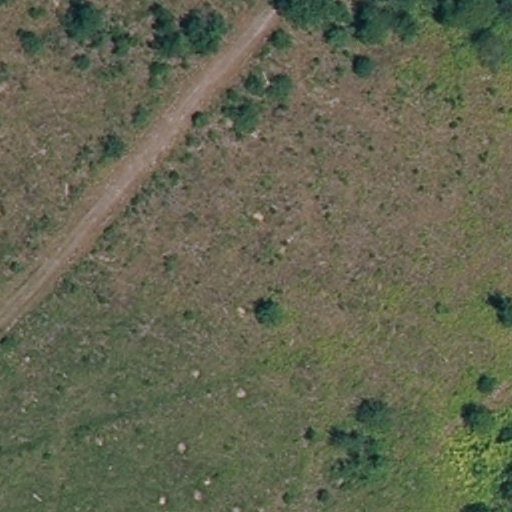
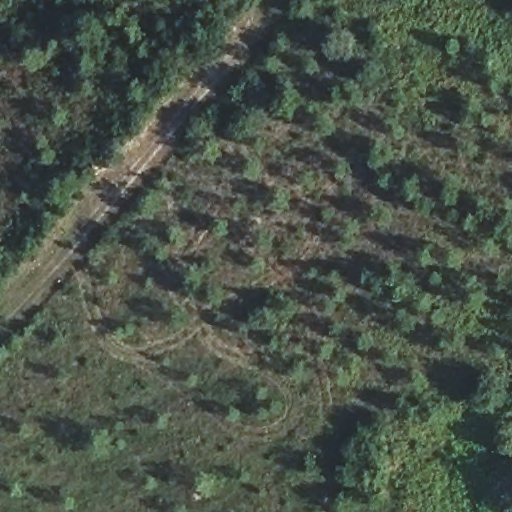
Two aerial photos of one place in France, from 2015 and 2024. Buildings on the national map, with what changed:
[]

